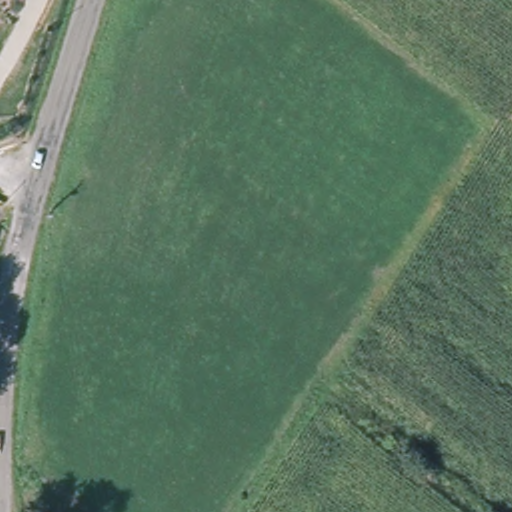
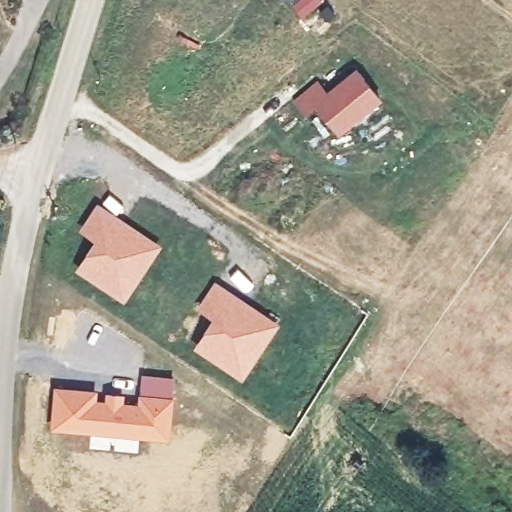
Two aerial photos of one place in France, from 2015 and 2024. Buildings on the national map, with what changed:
new [(317,79),(326,90),(356,66),(382,99),(338,133),(316,109),(305,118),(291,100),(317,79)]
new [(92,240),(77,230),(97,202),(162,245),(124,302),(74,270),(92,240)]
new [(210,318),(195,308),(214,280),(280,322),(242,381),(192,348),(210,318)]
new [(53,387),(125,395),(125,401),(136,402),(140,375),(175,379),(170,439),(50,429),(53,387)]

